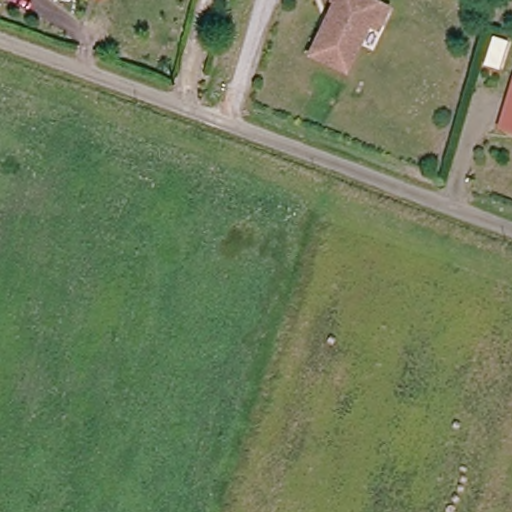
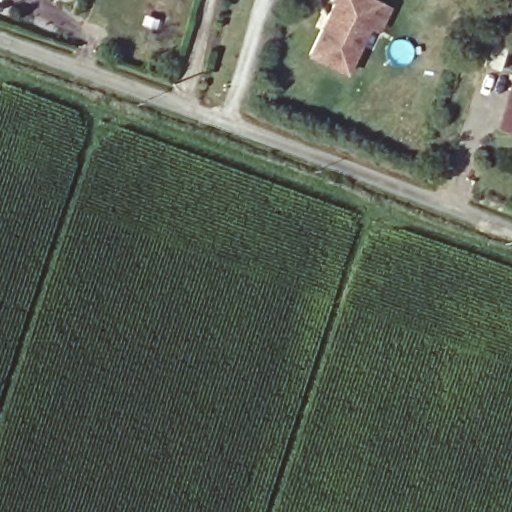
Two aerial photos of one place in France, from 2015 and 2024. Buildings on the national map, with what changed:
unchanged [(338,5),(335,4),(336,0),(372,0),(392,9),(384,28),(382,32),(372,28),(350,75),(312,58),(338,5)]
unchanged [(512,50),(509,59),(503,78),(487,73),(496,43),(512,47),(512,50)]
unchanged [(512,96),(512,133),(502,130),(512,96)]

